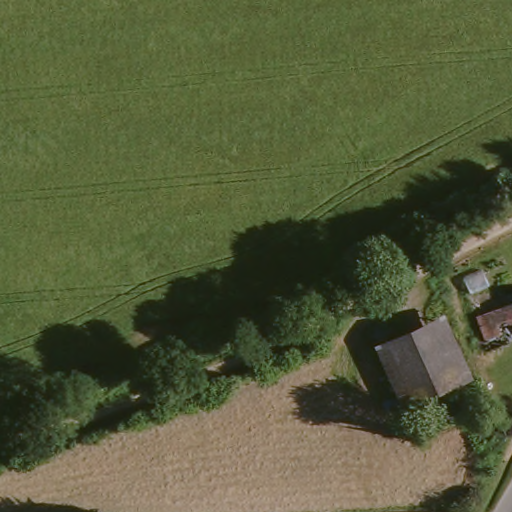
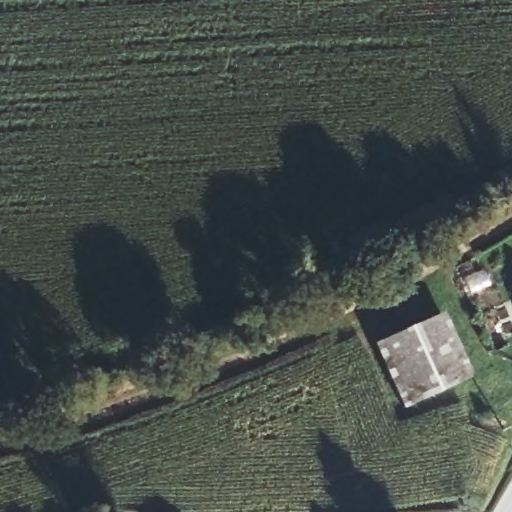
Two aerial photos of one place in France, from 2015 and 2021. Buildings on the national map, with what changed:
unchanged [(512,299),(512,309),(509,300),(512,299)]
unchanged [(512,309),(512,344),(490,352),(475,313),(509,300),(512,309)]
unchanged [(412,404),(383,340),(436,317),(465,381),(412,404)]

